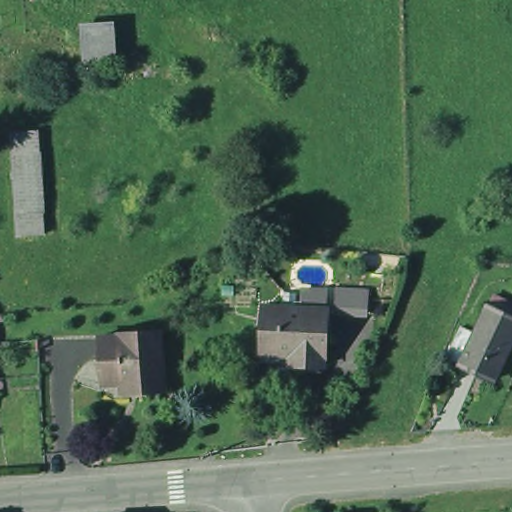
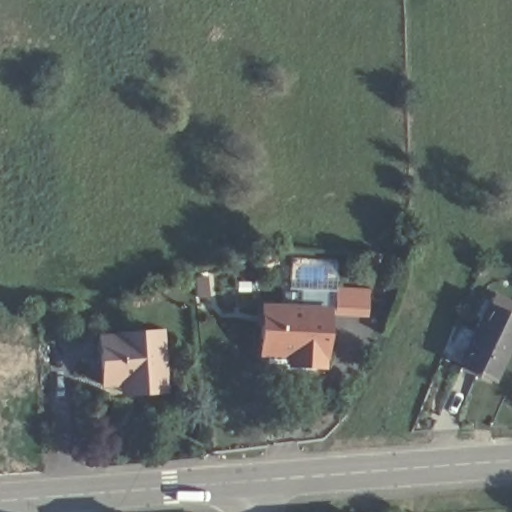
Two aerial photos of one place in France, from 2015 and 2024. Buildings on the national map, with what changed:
demolished [(89,22),(115,20),(118,55),(91,57),(89,22)]
demolished [(13,133),(39,131),(45,233),(20,235),(13,133)]
new [(338,290),(366,291),(365,308),(337,307),(338,290)]
unchanged [(491,303),(512,312),(512,348),(499,375),(465,359),(491,303)]
unchanged [(262,309),(328,311),(326,356),(323,356),(323,367),(290,365),(290,355),(261,354),(262,309)]
unchanged [(122,395),(121,383),(102,384),(100,337),(120,336),(120,334),(160,331),(163,387),(165,393),(122,395)]

